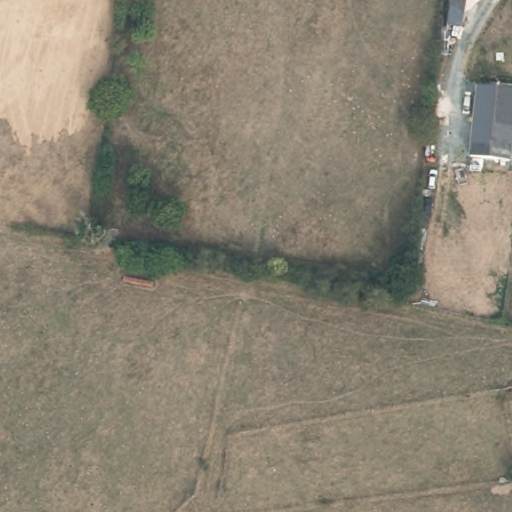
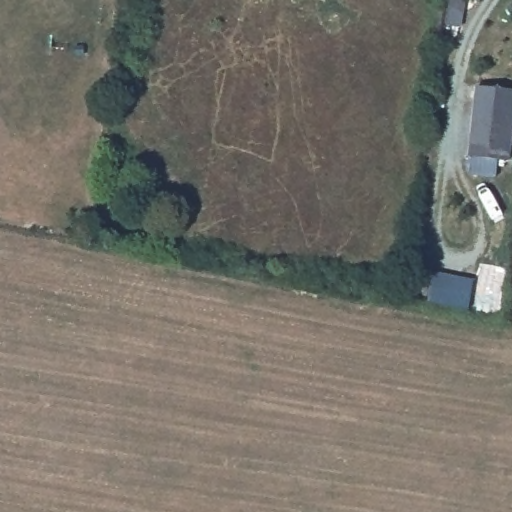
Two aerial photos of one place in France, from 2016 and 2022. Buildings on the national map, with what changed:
unchanged [(512,132),(508,162),(470,156),(477,84),(512,89),(512,132)]
new [(435,272),(476,279),(470,311),(429,303),(435,272)]

